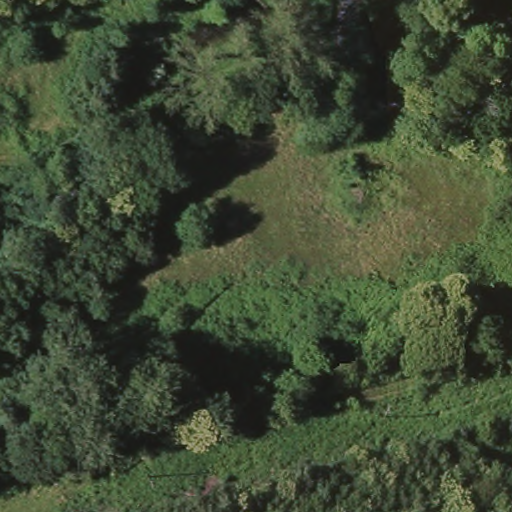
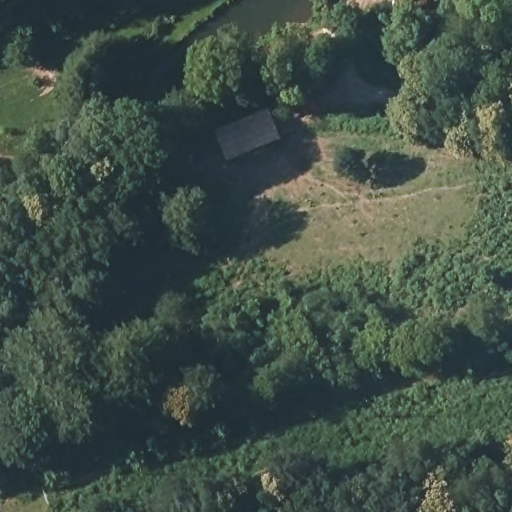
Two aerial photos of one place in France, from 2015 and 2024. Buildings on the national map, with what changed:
new [(228,162),(217,133),(272,112),(283,142),(228,162)]

